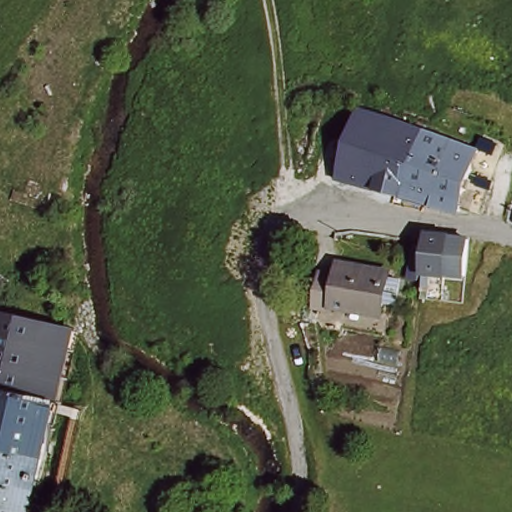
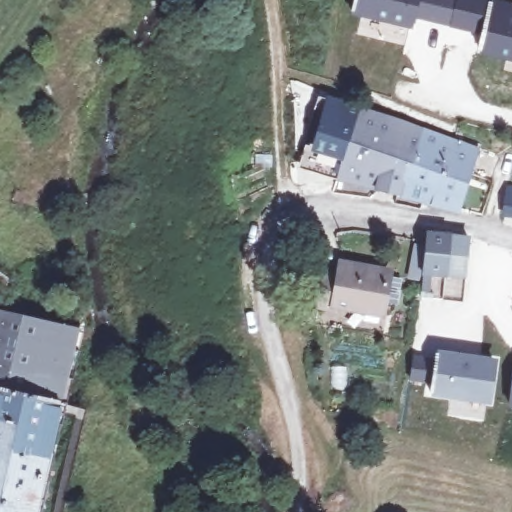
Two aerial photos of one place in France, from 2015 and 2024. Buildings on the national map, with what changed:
new [(487,0),(483,15),(477,32),(414,18),(412,28),(350,12),(353,0),(487,0)]
new [(483,15),(487,0),(498,0),(512,4),(512,62),(479,55),(487,16),(483,15)]
unchanged [(342,176),(363,110),(479,150),(461,208),(342,176)]
new [(512,184),(512,219),(501,218),(504,183),(512,184)]
unchanged [(465,242),(460,281),(443,278),(441,278),(422,275),(428,236),(449,239),(465,242)]
unchanged [(343,282),(344,269),(372,272),(371,280),(392,283),(388,317),(341,310),(341,316),(322,313),(326,280),(343,282)]
unchanged [(78,330),(61,400),(0,388),(0,312),(78,330)]
new [(497,364),(491,403),(433,395),(439,356),(497,364)]
new [(512,376),(512,406),(508,405),(512,376)]
unchanged [(61,400),(36,512),(0,512),(0,388),(61,400)]

